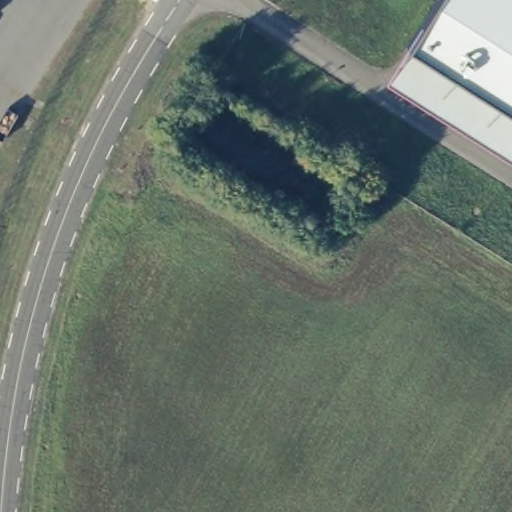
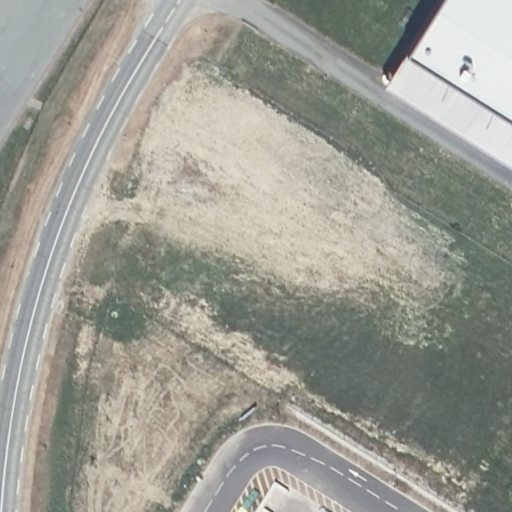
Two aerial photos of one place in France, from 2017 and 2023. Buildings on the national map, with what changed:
unchanged [(438,0),(512,0),(512,105),(412,42),(438,0)]

